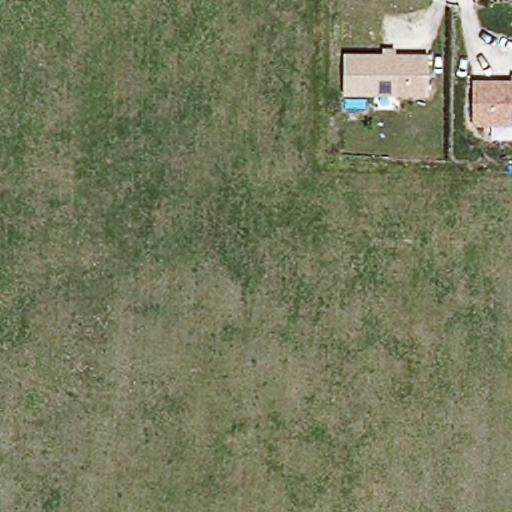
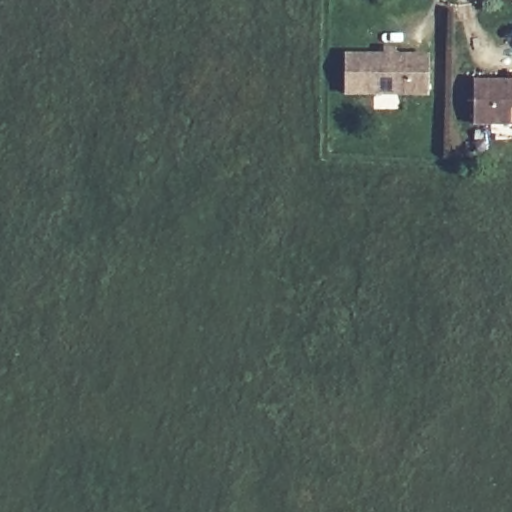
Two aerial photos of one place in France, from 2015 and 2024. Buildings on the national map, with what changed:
unchanged [(345,54),(381,54),(381,49),(395,48),(395,54),(429,55),(428,97),(343,97),(345,54)]
unchanged [(512,74),(512,80),(511,74),(512,74)]
unchanged [(472,80),(512,80),(512,129),(472,129),(472,80)]

